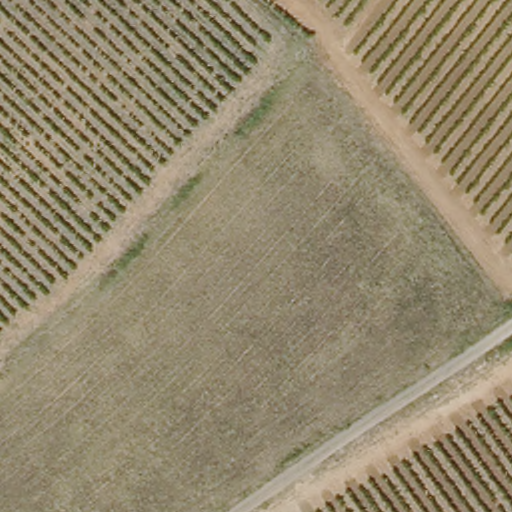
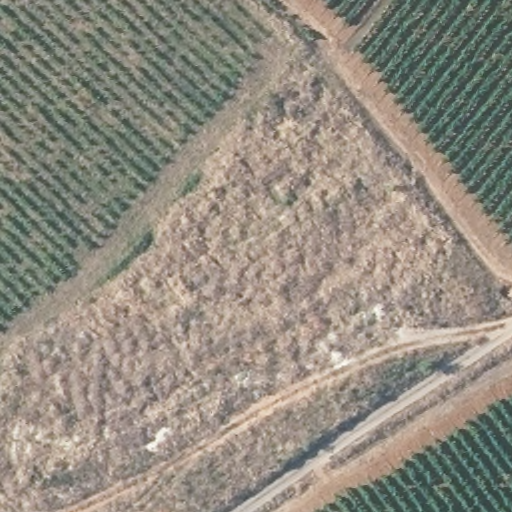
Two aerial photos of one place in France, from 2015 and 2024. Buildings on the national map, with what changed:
[]

